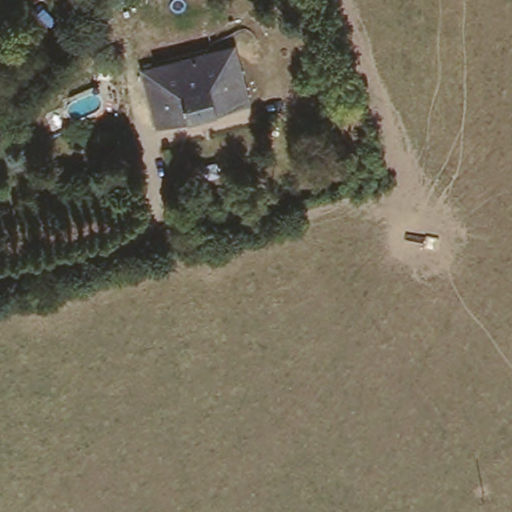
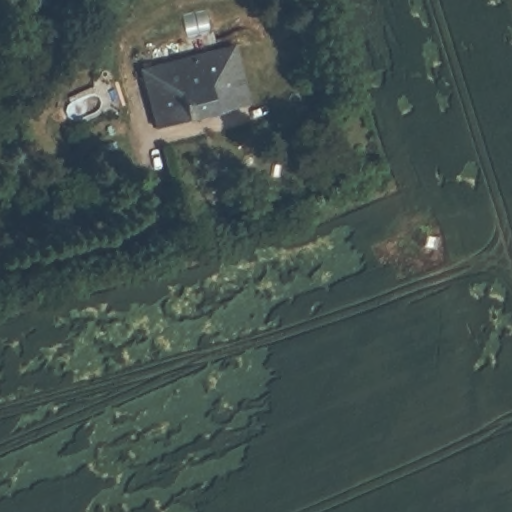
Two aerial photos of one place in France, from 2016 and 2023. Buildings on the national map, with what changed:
unchanged [(66,7),(18,22),(11,0),(64,0),(66,7)]
unchanged [(144,74),(214,57),(211,47),(233,42),(250,110),(158,134),(144,74)]

